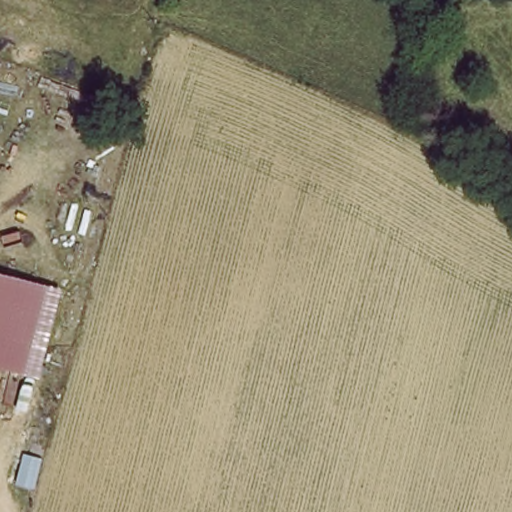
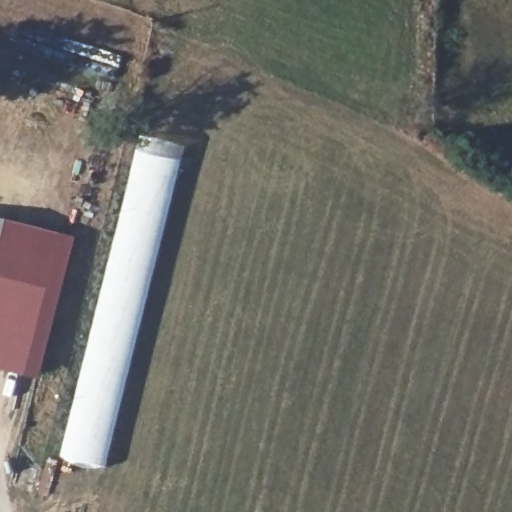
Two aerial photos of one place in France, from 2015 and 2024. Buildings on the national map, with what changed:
new [(63,457),(141,137),(184,147),(106,466),(63,457)]
new [(0,368),(0,218),(73,237),(37,377),(0,368)]
demolished [(49,285),(27,364),(0,355),(0,269),(49,285)]

